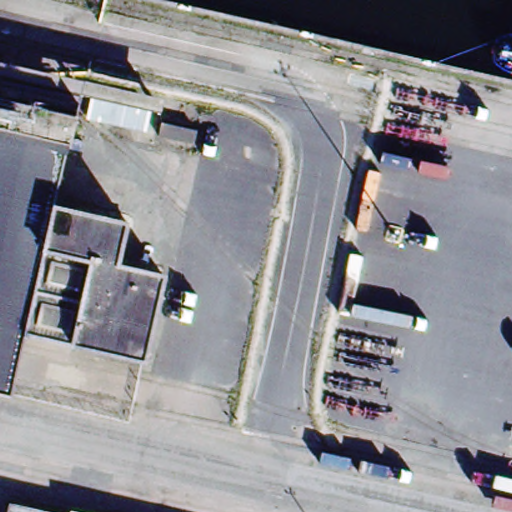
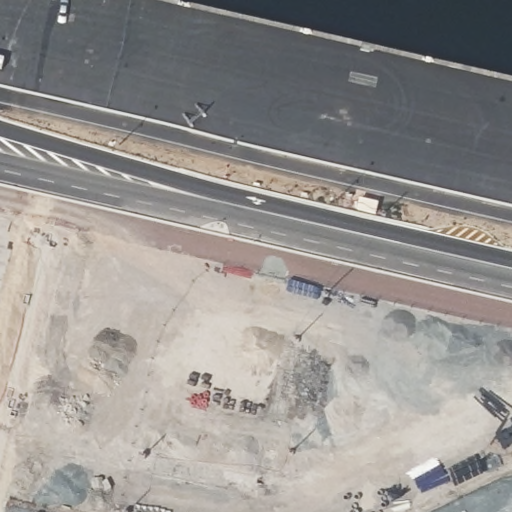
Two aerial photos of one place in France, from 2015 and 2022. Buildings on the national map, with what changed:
demolished [(0,128),(0,90),(83,109),(75,145),(0,128)]
demolished [(202,140),(167,131),(170,119),(205,126),(202,140)]
demolished [(0,394),(0,128),(75,145),(59,202),(48,254),(91,263),(75,346),(29,336),(18,398),(0,394)]
demolished [(134,220),(125,262),(167,275),(147,364),(75,346),(91,263),(48,254),(59,202),(134,220)]
demolished [(91,512),(15,512),(19,495),(91,512)]

